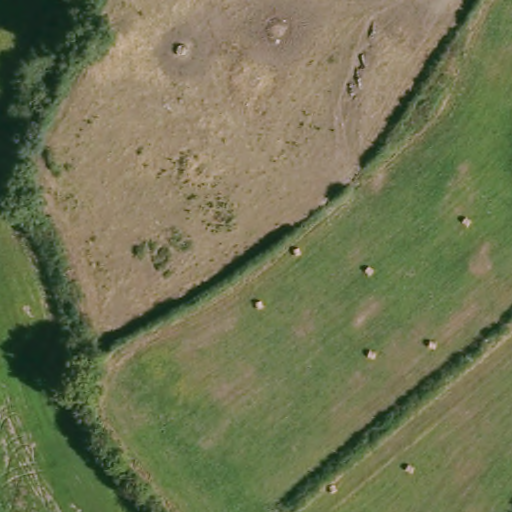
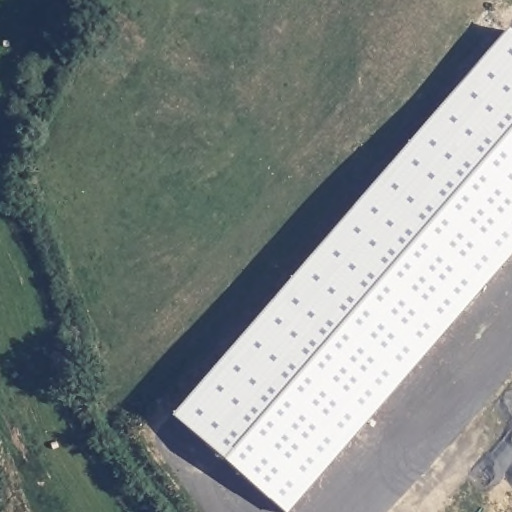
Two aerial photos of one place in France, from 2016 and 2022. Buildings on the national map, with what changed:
new [(512,38),(512,255),(292,512),(282,512),(177,424),(505,33),(512,38)]

